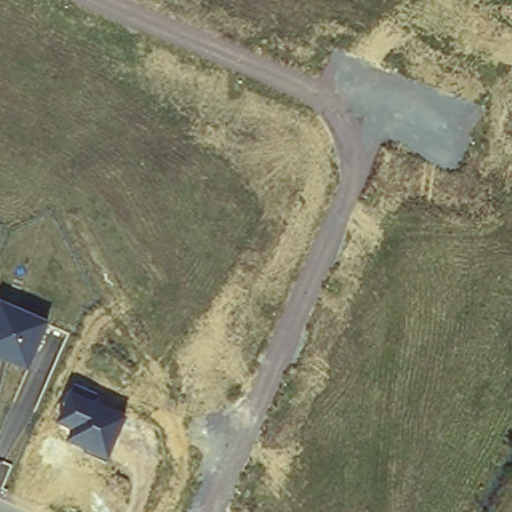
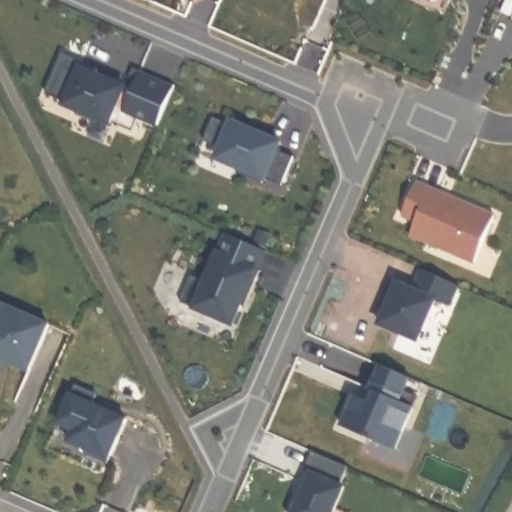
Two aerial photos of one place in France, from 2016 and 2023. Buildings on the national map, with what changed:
new [(452,1),(449,0),(452,0),(452,1)]
new [(137,121),(131,135),(112,126),(111,130),(75,114),(77,111),(45,97),(62,57),(97,72),(95,77),(102,80),(109,84),(132,94),(138,80),(171,94),(156,129),(137,121)]
new [(171,94),(138,80),(132,94),(125,90),(133,72),(173,90),(171,94)]
new [(212,122),(250,139),(252,135),(278,147),(275,155),(292,162),(279,190),(262,183),(260,188),(234,176),(236,171),(215,163),(219,153),(202,145),(212,122)]
new [(437,237),(400,220),(415,187),(438,198),(437,202),(445,206),(447,202),(493,221),(472,268),(431,250),(408,240),(414,227),(437,237)]
new [(230,330),(178,307),(189,281),(203,286),(222,238),(263,255),(255,274),(258,275),(247,301),(242,311),(239,310),(244,300),(230,330)]
new [(456,291),(446,311),(432,305),(415,345),(377,329),(386,308),(380,305),(388,285),(411,295),(419,275),(456,291)]
unchanged [(0,360),(0,300),(51,325),(29,371),(0,360)]
new [(337,422),(355,380),(370,388),(382,361),(414,375),(405,396),(418,403),(397,450),(337,422)]
unchanged [(107,463),(66,445),(72,428),(56,422),(71,391),(127,418),(107,463)]
new [(307,480),(300,476),(308,456),(345,472),(337,490),(340,492),(331,512),(289,512),(292,505),(295,506),(307,480)]
new [(297,493),(300,495),(295,506),(292,505),(297,493)]

